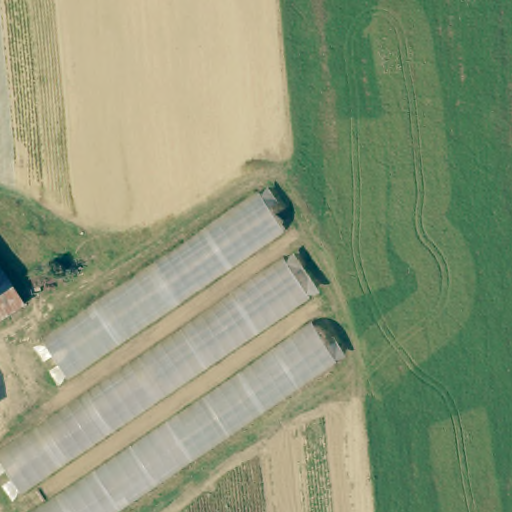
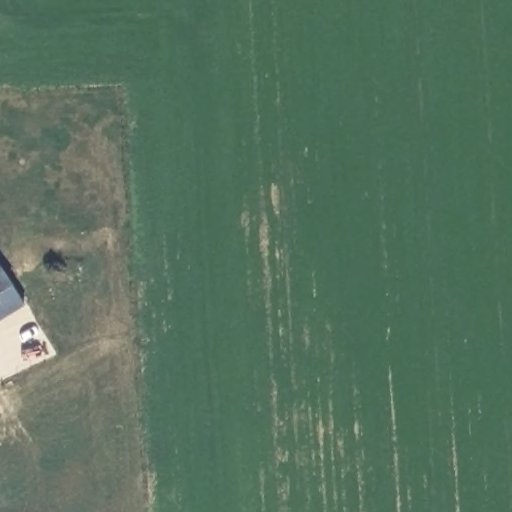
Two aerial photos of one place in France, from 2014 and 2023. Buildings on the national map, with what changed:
demolished [(270,191),(297,230),(71,380),(42,344),(270,191)]
demolished [(323,301),(20,501),(0,474),(0,460),(293,260),(323,301)]
unchanged [(0,262),(17,283),(0,296),(0,262)]
unchanged [(2,326),(0,324),(0,296),(17,283),(35,303),(2,326)]
demolished [(344,362),(127,512),(44,512),(318,325),(344,362)]

